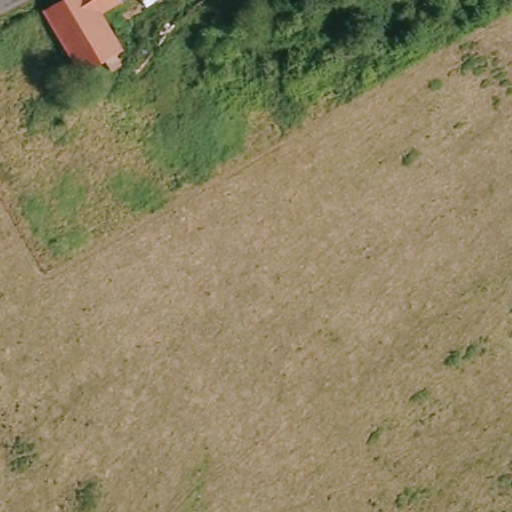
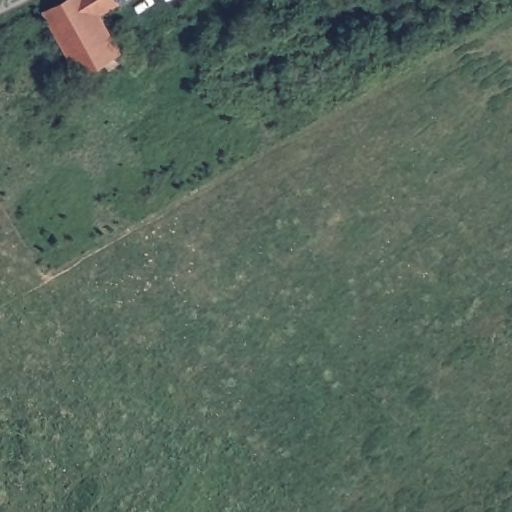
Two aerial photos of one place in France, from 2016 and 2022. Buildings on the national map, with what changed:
unchanged [(126,53),(106,67),(99,57),(76,70),(38,6),(48,0),(114,0),(100,9),(126,53)]

